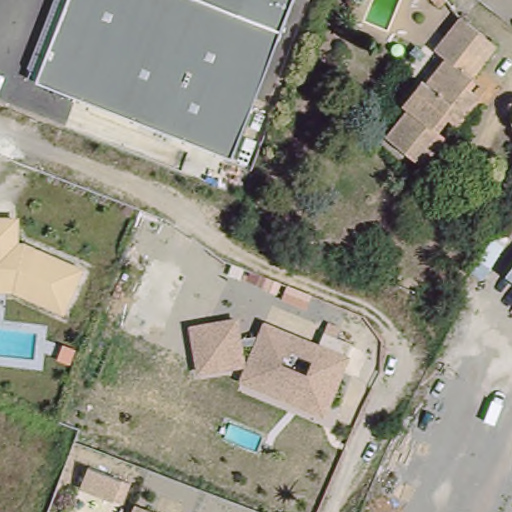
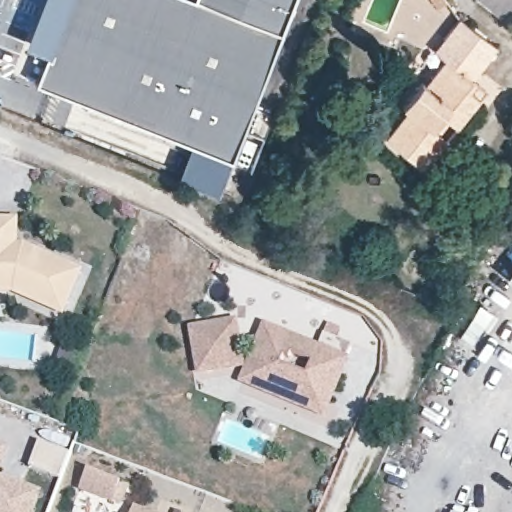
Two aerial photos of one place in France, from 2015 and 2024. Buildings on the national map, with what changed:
unchanged [(35,86),(68,0),(192,0),(193,0),(194,0),(295,0),(231,163),(35,86)]
unchanged [(439,9),(432,0),(445,0),(447,4),(439,9)]
unchanged [(510,26),(478,0),(512,0),(512,23),(510,26)]
unchanged [(427,163),(388,133),(410,107),(405,101),(423,77),(427,80),(447,55),(437,45),(461,15),(497,45),(473,75),(487,86),(481,94),(458,124),(440,145),(427,163)]
unchanged [(23,242),(85,267),(66,315),(17,294),(0,294),(0,217),(22,217),(23,242)]
unchanged [(509,277),(512,273),(512,279),(509,277)]
unchanged [(240,314),(251,359),(265,319),(323,342),(328,321),(360,334),(328,412),(243,380),(246,366),(201,373),(191,324),(240,314)]
new [(0,476),(0,443),(10,447),(0,476)]
new [(71,454),(61,480),(30,469),(40,443),(71,454)]
unchanged [(92,469),(130,484),(125,504),(85,489),(92,469)]
new [(35,512),(0,512),(0,476),(42,491),(35,512)]
unchanged [(137,505),(155,512),(136,512),(137,505)]

